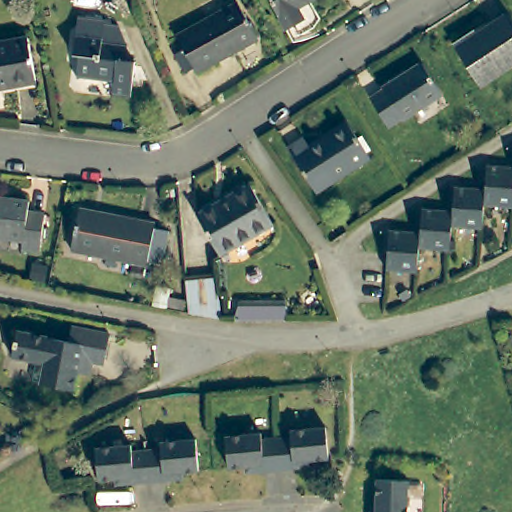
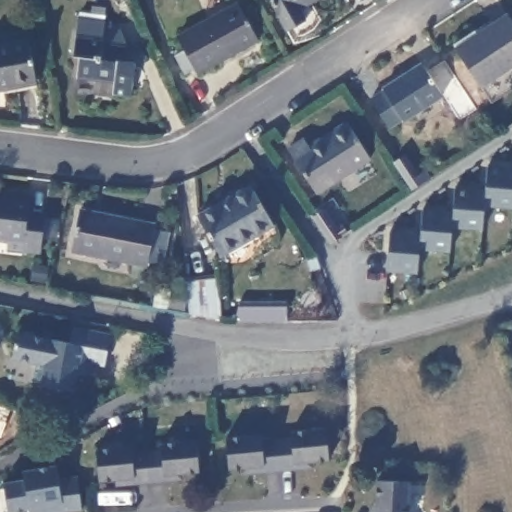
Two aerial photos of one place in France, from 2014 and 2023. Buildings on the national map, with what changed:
unchanged [(271,0),(312,0),(301,6),(306,18),(287,29),(271,0)]
unchanged [(237,1),(257,39),(197,72),(177,35),(237,1)]
unchanged [(508,13),(512,20),(512,64),(479,86),(455,47),(508,13)]
unchanged [(76,78),(78,56),(72,55),(75,34),(77,17),(114,21),(124,44),(126,45),(124,61),(134,62),(130,97),(112,95),(113,82),(76,78)]
unchanged [(29,37),(37,82),(0,89),(0,42),(29,37)]
unchanged [(370,98),(381,90),(380,88),(422,61),(443,94),(402,121),(400,118),(388,126),(370,98)]
unchanged [(287,149),(304,138),(308,146),(347,121),(370,157),(314,191),(287,149)]
new [(409,155),(421,172),(426,168),(431,176),(413,188),(396,163),(409,155)]
unchanged [(482,234),(452,232),(449,256),(419,254),(417,278),(386,276),(389,234),(390,235),(420,237),(422,212),(453,214),(455,191),(485,193),(488,170),(497,171),(512,172),(512,211),(485,210),(482,234)]
unchanged [(197,214),(250,185),(273,223),(220,254),(197,214)]
unchanged [(29,201),(28,212),(45,215),(41,251),(20,248),(22,238),(0,235),(0,198),(29,201)]
unchanged [(140,220),(155,223),(153,236),(167,238),(161,271),(146,268),(147,264),(72,249),(79,208),(140,220)]
unchanged [(218,277),(221,315),(222,318),(189,312),(187,281),(218,277)]
unchanged [(73,373),(70,389),(37,383),(38,381),(31,380),(34,362),(10,357),(15,332),(65,342),(68,327),(106,334),(101,363),(90,361),(87,375),(73,373)]
unchanged [(285,467),(269,468),(266,435),(283,434),(283,429),(318,426),(320,458),(304,459),(305,465),(285,467)]
unchanged [(236,466),(219,467),(217,436),(252,432),(252,437),(266,435),(269,468),(254,470),(237,471),(236,466)]
unchanged [(160,474),(143,475),(140,443),(156,442),(156,437),(191,434),(194,466),(178,466),(178,472),(160,474)]
unchanged [(110,473),(92,474),(90,443),(126,440),(126,444),(140,443),(143,475),(130,476),(111,478),(110,473)]
new [(30,512),(30,509),(10,511),(4,481),(23,478),(21,469),(56,464),(60,478),(77,475),(82,510),(65,512),(30,512)]
unchanged [(374,479),(404,480),(403,512),(367,512),(368,503),(373,503),(374,479)]

